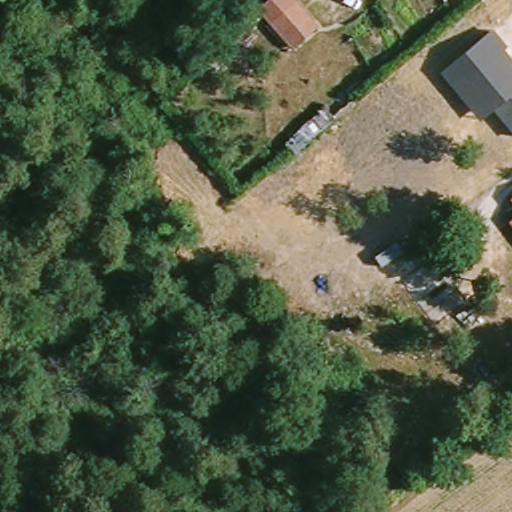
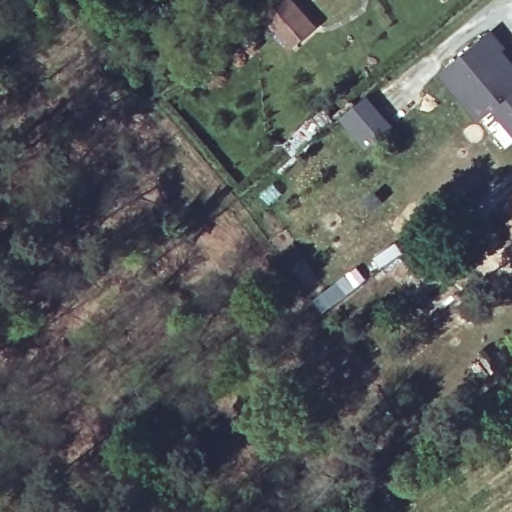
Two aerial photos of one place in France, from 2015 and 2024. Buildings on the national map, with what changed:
unchanged [(287,40),(265,16),(284,0),(289,0),(308,22),(287,40)]
unchanged [(508,46),(506,49),(512,57),(512,132),(495,111),(480,123),(440,72),(494,28),(508,46)]
new [(366,95),(395,129),(372,149),(343,114),(366,95)]

